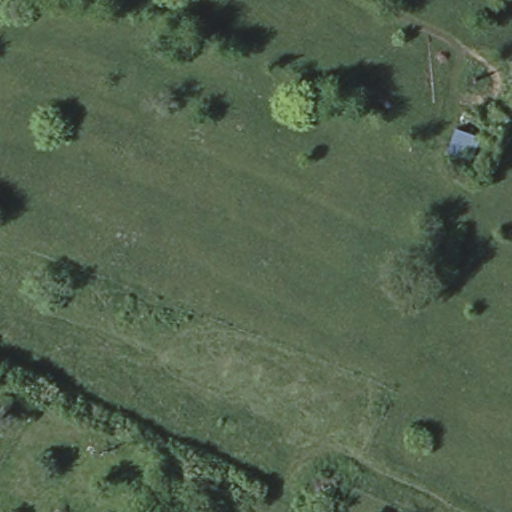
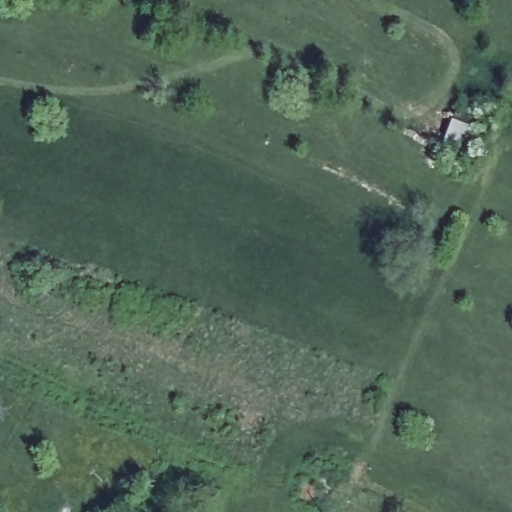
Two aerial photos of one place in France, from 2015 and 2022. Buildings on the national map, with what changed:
[]

